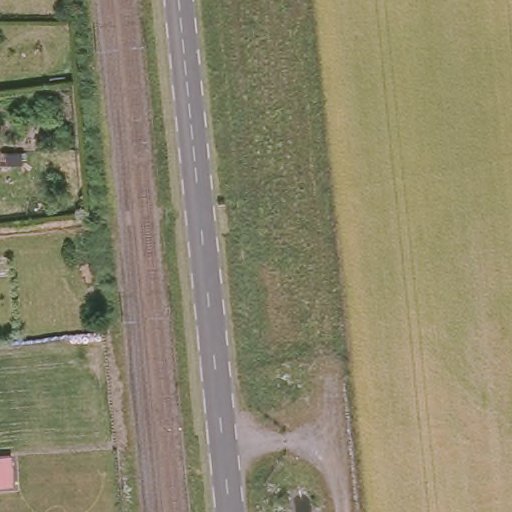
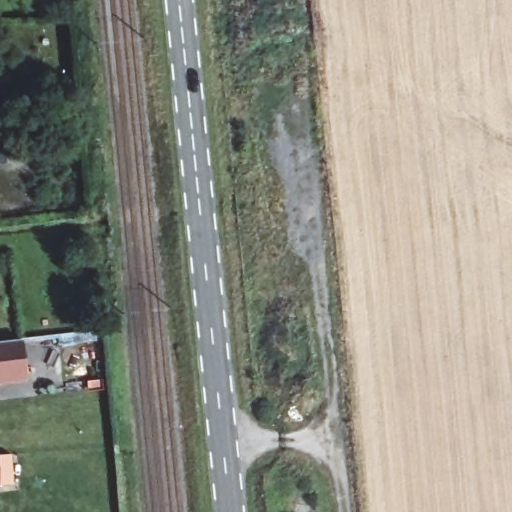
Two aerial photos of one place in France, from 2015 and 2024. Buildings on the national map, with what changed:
new [(26,380),(0,382),(0,343),(21,341),(26,380)]
unchanged [(11,455),(13,487),(0,488),(0,455),(11,455)]

